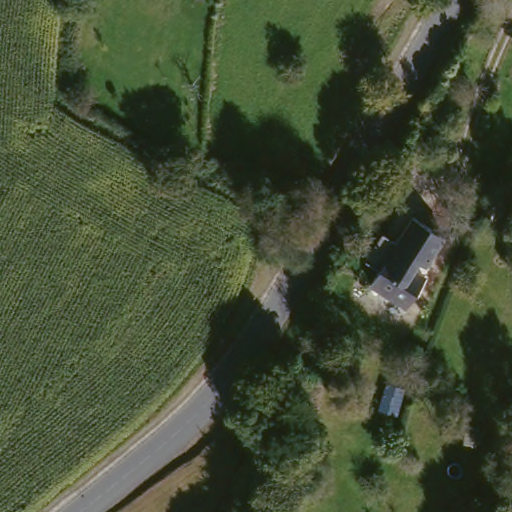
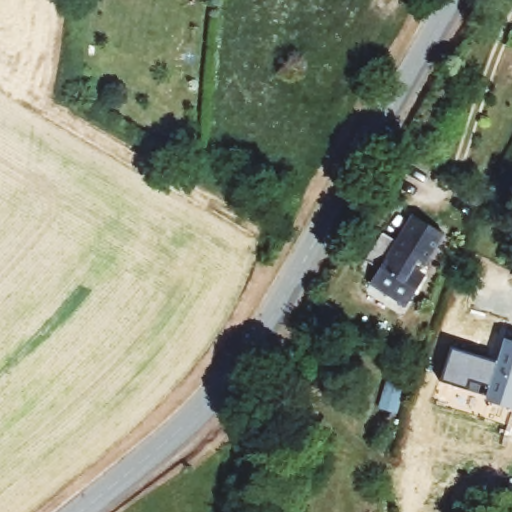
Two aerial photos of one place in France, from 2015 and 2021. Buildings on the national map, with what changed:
unchanged [(426,262),(418,258),(413,267),(426,274),(407,305),(372,284),(381,269),(366,261),(382,232),(397,240),(411,214),(443,232),(426,262)]
new [(499,360),(505,337),(512,339),(512,403),(441,382),(452,347),(499,360)]

